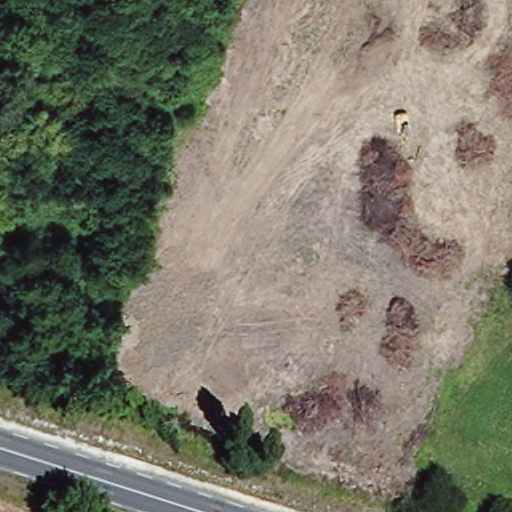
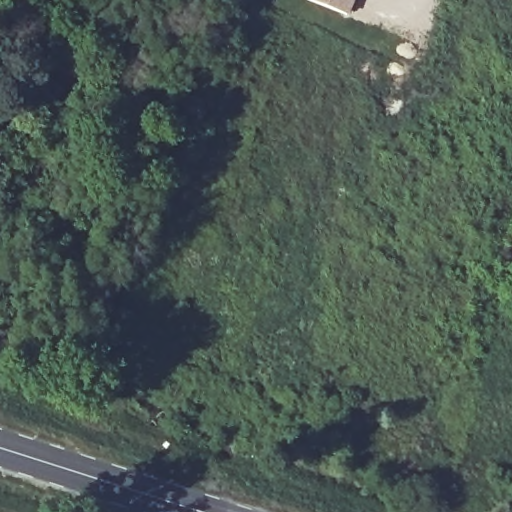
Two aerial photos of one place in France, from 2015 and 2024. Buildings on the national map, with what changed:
new [(307,0),(354,0),(348,16),(307,0)]

